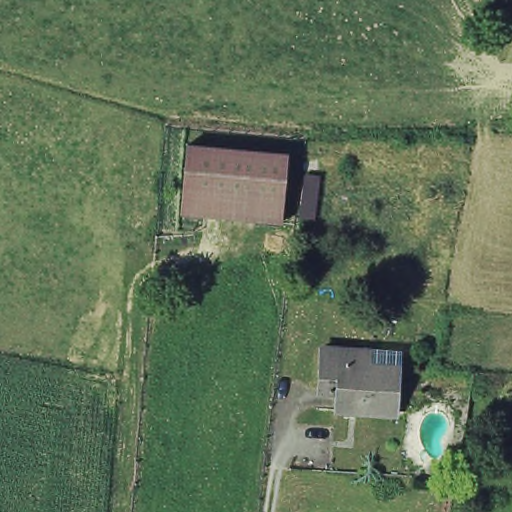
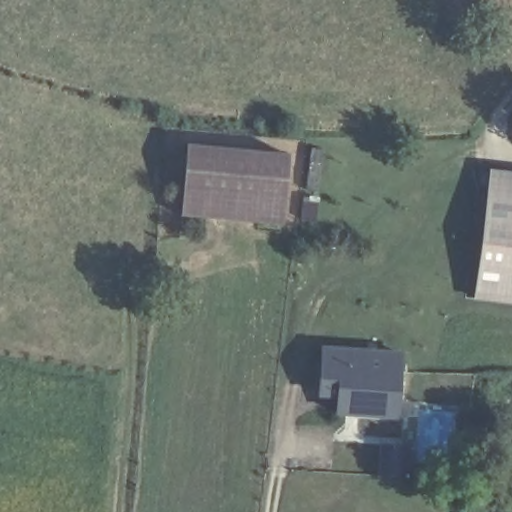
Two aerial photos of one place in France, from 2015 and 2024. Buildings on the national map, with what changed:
unchanged [(188,148),(287,156),(282,225),(182,217),(188,148)]
new [(489,189),(512,192),(512,301),(476,297),(489,189)]
unchanged [(394,372),(392,417),(332,413),(332,394),(315,393),(318,348),(364,352),(363,371),(394,372)]

